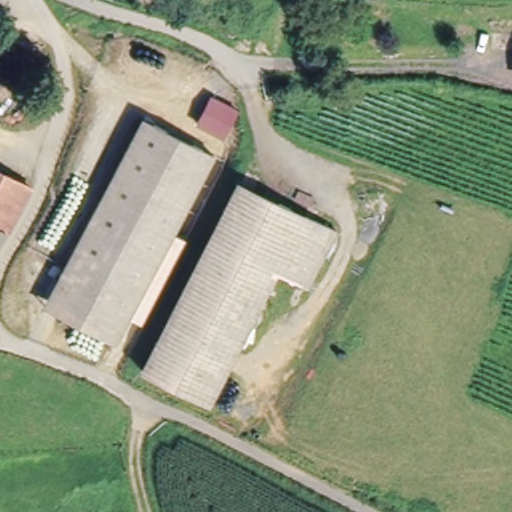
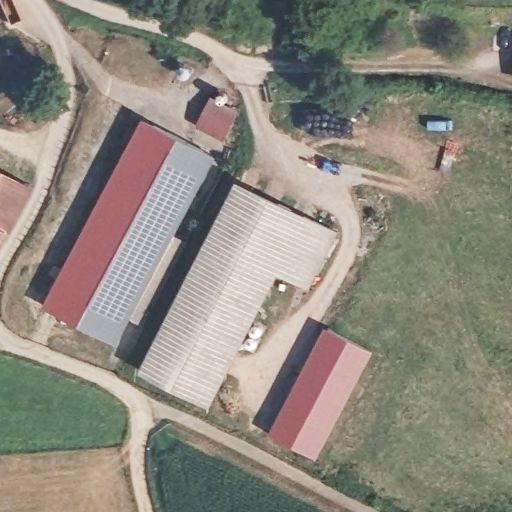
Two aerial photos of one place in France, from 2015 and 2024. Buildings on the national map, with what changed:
unchanged [(54,285),(139,125),(210,162),(125,322),(54,285)]
unchanged [(8,234),(6,233),(0,245),(0,173),(32,190),(8,234)]
unchanged [(209,405),(141,371),(234,182),(332,231),(305,286),(274,270),(209,405)]
unchanged [(40,311),(54,285),(125,322),(111,349),(40,311)]
new [(270,434),(326,326),(372,352),(316,458),(270,434)]

